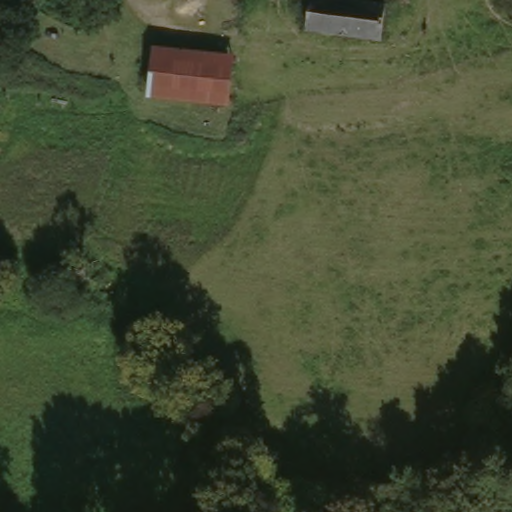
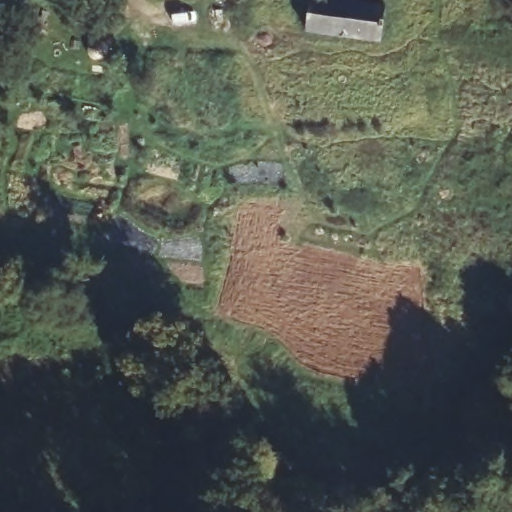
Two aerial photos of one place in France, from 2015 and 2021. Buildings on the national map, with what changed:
unchanged [(388,0),(382,36),(309,29),(313,0),(388,0)]
demolished [(147,95),(154,43),(236,52),(230,104),(147,95)]

